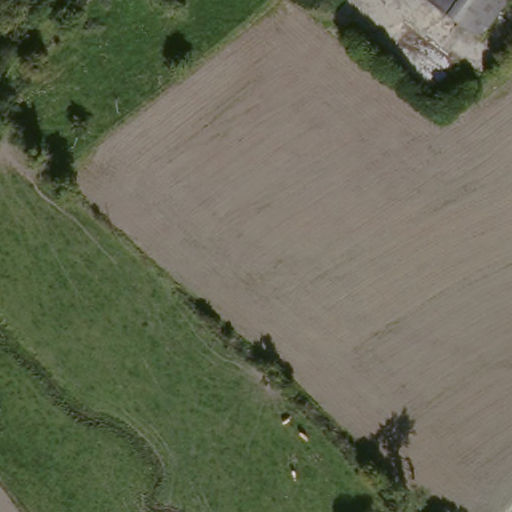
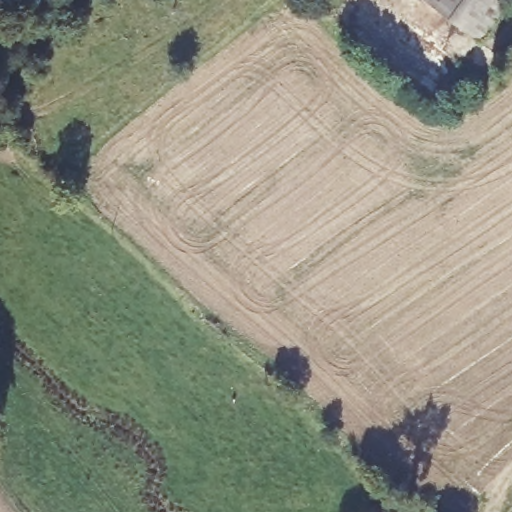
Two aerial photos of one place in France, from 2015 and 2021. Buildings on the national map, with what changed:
unchanged [(425,1),(426,0),(510,0),(485,41),(425,1)]

